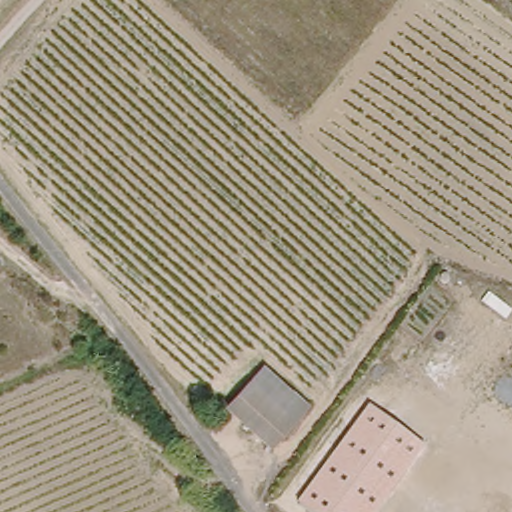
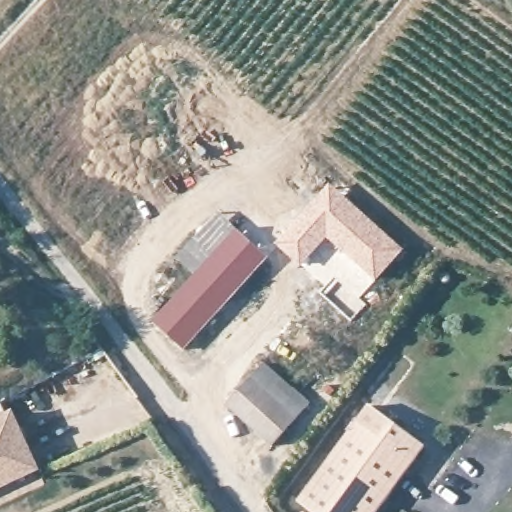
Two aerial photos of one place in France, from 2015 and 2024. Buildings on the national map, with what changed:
new [(331,183),(405,250),(375,282),(327,240),(300,267),(274,242),(331,183)]
new [(187,353),(153,323),(195,276),(178,258),(220,212),(269,258),(187,353)]
demolished [(446,273),(451,274),(452,279),(447,286),(443,284),(440,282),(442,276),(446,273)]
unchanged [(269,446),(225,405),(263,364),(308,406),(269,446)]
unchanged [(370,405),(424,447),(377,512),(311,512),(298,502),(370,405)]
new [(0,490),(0,417),(14,411),(42,471),(0,490)]

